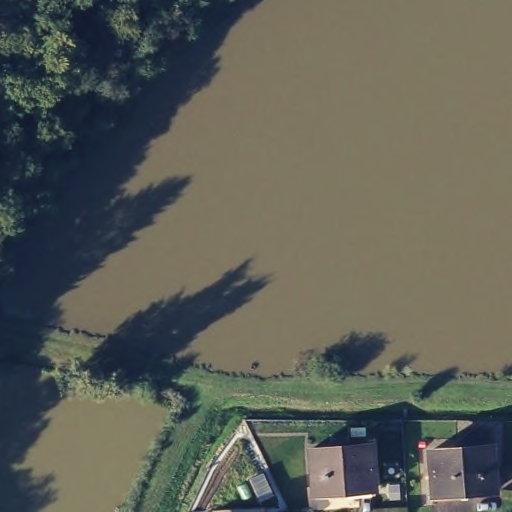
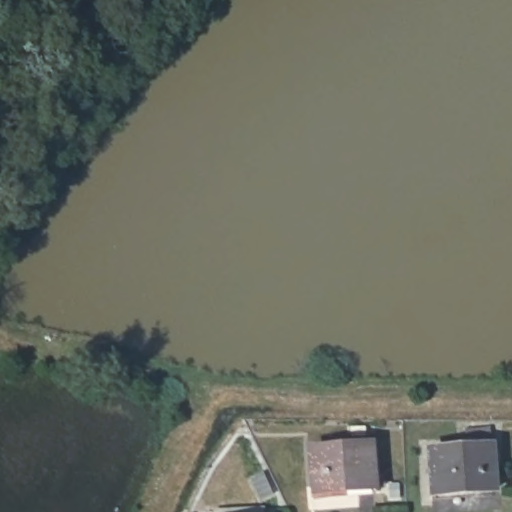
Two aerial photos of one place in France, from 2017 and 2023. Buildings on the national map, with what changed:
unchanged [(369,423),(370,432),(356,433),(356,423),(369,423)]
unchanged [(493,491),(432,496),(428,453),(465,450),(463,435),(486,432),(488,448),(490,448),(493,491)]
unchanged [(314,446),(375,441),(380,485),(317,491),(314,446)]
unchanged [(397,500),(388,500),(387,486),(397,485),(397,500)]

